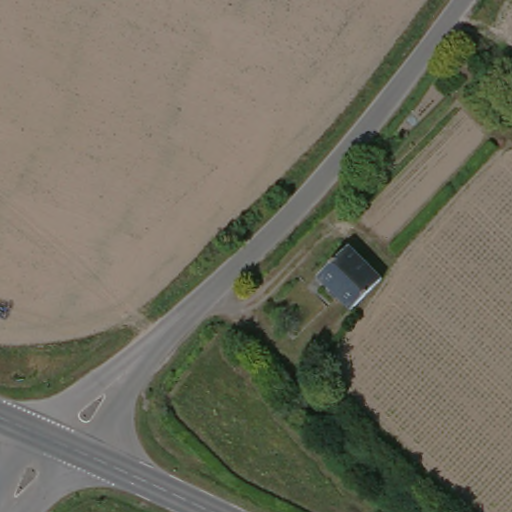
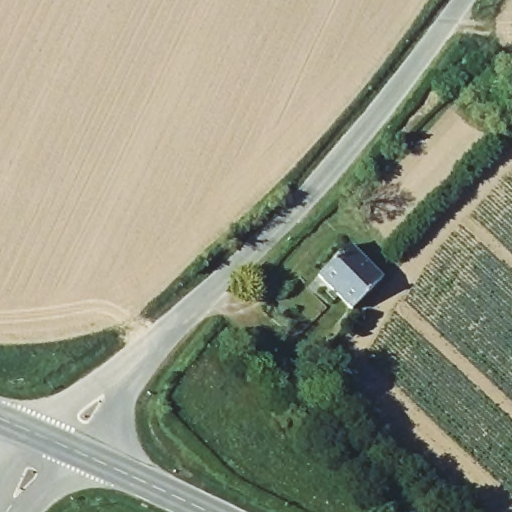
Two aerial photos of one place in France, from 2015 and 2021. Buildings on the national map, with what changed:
unchanged [(379,285),(345,318),(314,285),(346,253),(379,285)]

